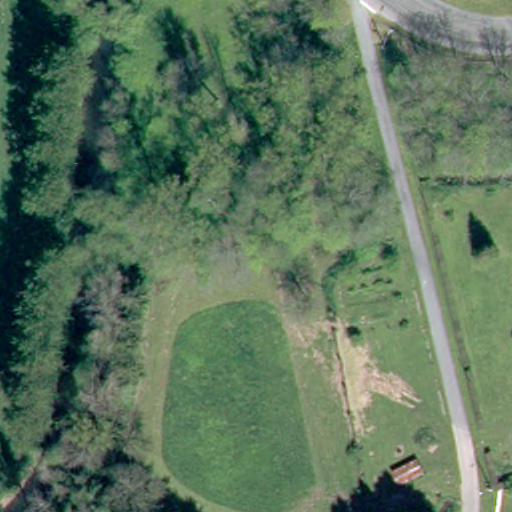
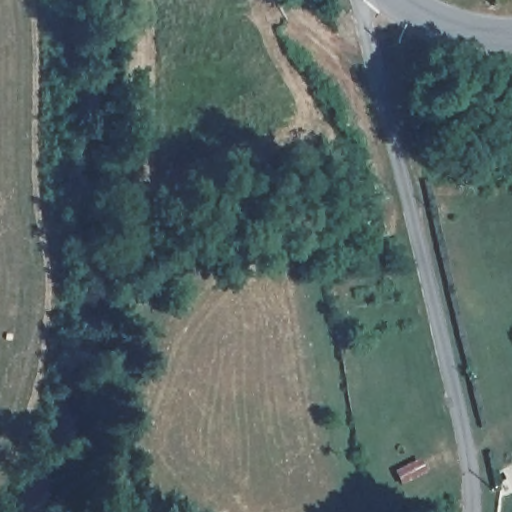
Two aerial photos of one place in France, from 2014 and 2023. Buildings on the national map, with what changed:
unchanged [(423,464),(400,481),(393,471),(415,454),(423,464)]

